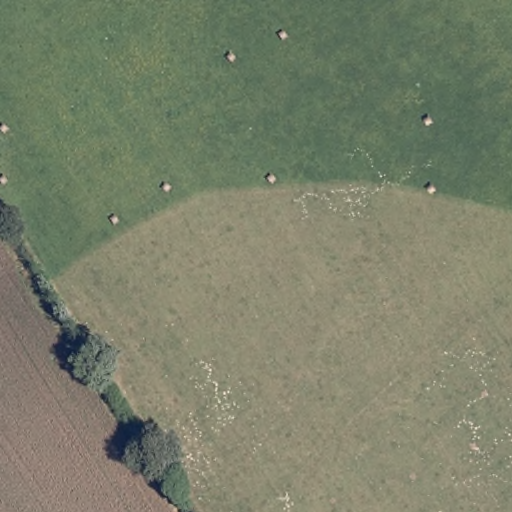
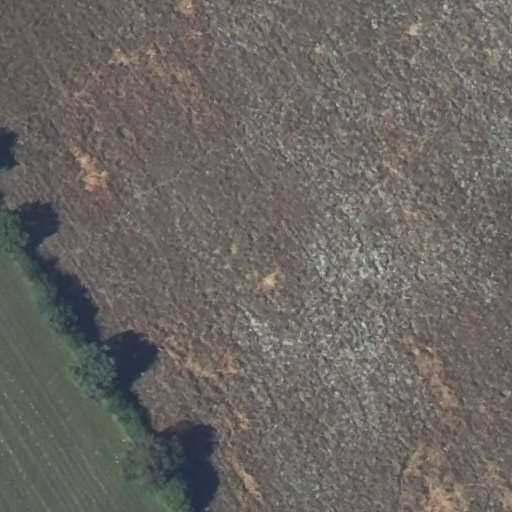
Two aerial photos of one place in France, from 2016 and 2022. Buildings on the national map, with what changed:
[]

